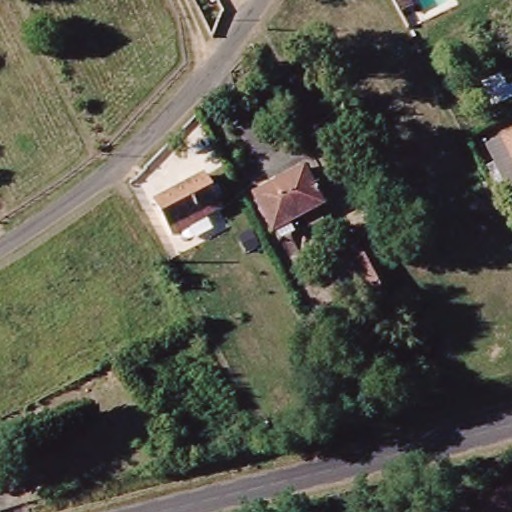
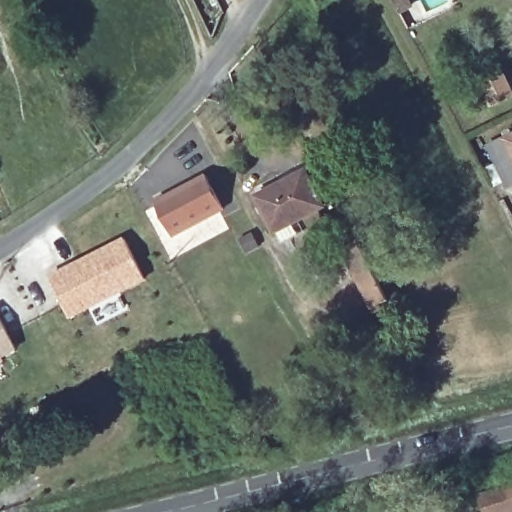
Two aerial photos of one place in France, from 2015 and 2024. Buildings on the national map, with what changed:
unchanged [(509,189),(488,145),(512,134),(512,188),(509,189)]
unchanged [(317,204),(323,216),(308,223),(302,212),(274,225),(256,192),(304,168),(322,202),(317,204)]
unchanged [(170,236),(154,203),(204,177),(222,210),(170,236)]
new [(124,237),(147,280),(69,318),(49,275),(124,237)]
unchanged [(387,299),(372,307),(342,249),(356,242),(387,299)]
new [(0,360),(0,315),(18,352),(0,360)]
unchanged [(479,495),(512,484),(512,512),(485,512),(479,495)]

